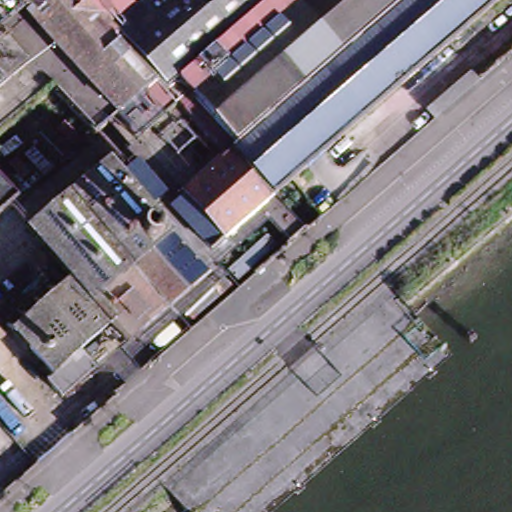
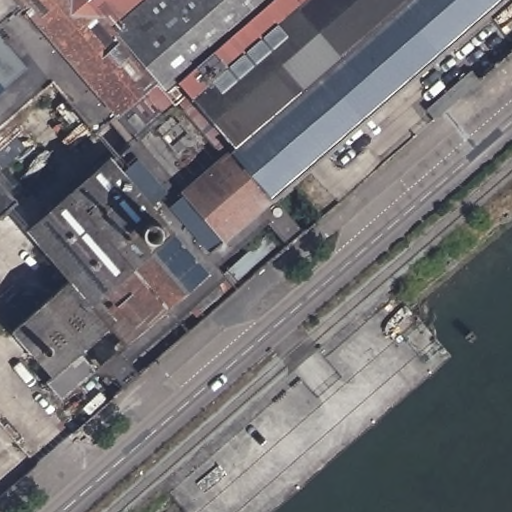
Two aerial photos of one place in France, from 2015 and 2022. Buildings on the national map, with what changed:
unchanged [(153,76),(113,110),(18,0),(88,0),(153,76)]
unchanged [(271,193),(230,146),(233,144),(229,139),(177,80),(165,90),(153,76),(88,0),(497,0),(272,195),(271,193)]
unchanged [(512,4),(509,0),(512,0),(512,4)]
unchanged [(38,77),(0,111),(0,32),(38,77)]
unchanged [(450,89),(475,67),(485,77),(467,92),(459,99),(450,107),(438,117),(429,106),(450,89)]
unchanged [(92,366),(57,397),(42,380),(51,372),(10,328),(68,275),(26,226),(173,97),(165,90),(177,80),(229,139),(233,144),(230,146),(271,193),(272,195),(197,258),(207,270),(201,276),(125,342),(108,322),(77,349),(92,366)]
unchanged [(11,201),(0,210),(0,189),(11,201)]

